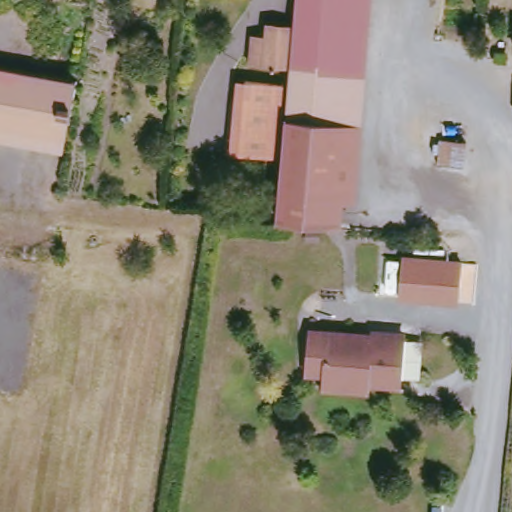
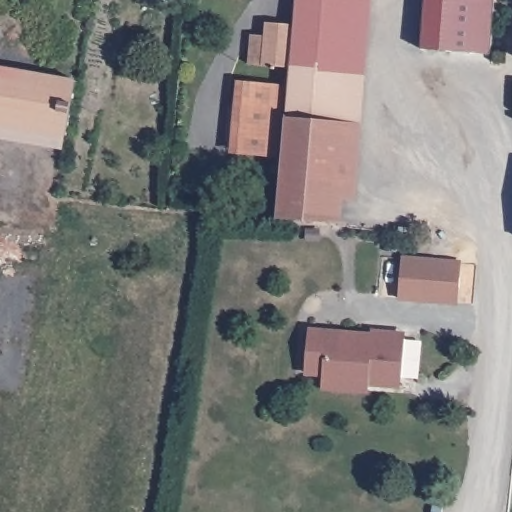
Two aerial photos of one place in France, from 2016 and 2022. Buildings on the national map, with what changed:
unchanged [(302,70),(305,29),(297,29),(299,0),(364,0),(357,74),(302,70)]
new [(425,0),(495,0),(492,52),(422,47),(425,0)]
unchanged [(279,40),(280,27),(297,29),(305,29),(302,70),(277,67),(264,66),(267,39),(279,40)]
unchanged [(302,70),(357,74),(354,124),(297,118),(302,70)]
unchanged [(65,139),(0,128),(0,72),(74,85),(65,139)]
unchanged [(295,87),(289,157),(252,155),(257,84),(295,87)]
unchanged [(297,118),(354,124),(345,226),(289,221),(297,118)]
unchanged [(457,308),(400,303),(404,258),(465,262),(457,308)]
unchanged [(324,383),(324,376),(324,370),(306,370),(309,328),(405,333),(402,372),(402,380),(370,378),(370,386),(324,383)]

